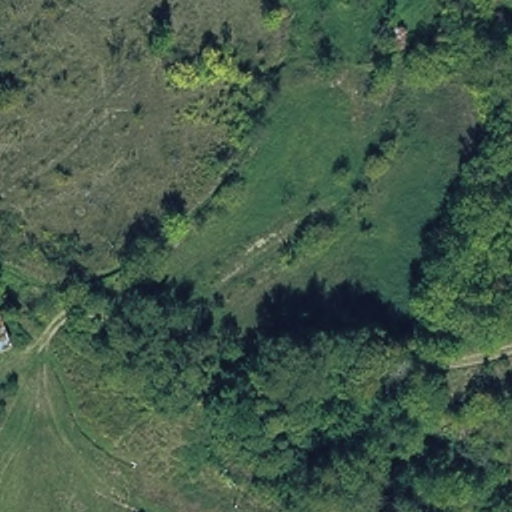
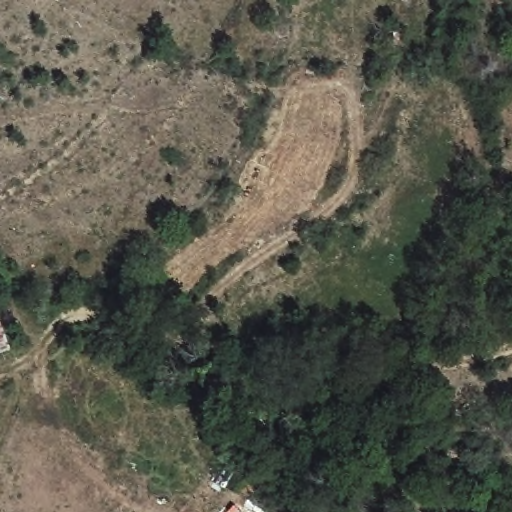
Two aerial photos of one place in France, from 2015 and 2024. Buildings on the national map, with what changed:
unchanged [(13,346),(0,352),(0,318),(13,346)]

